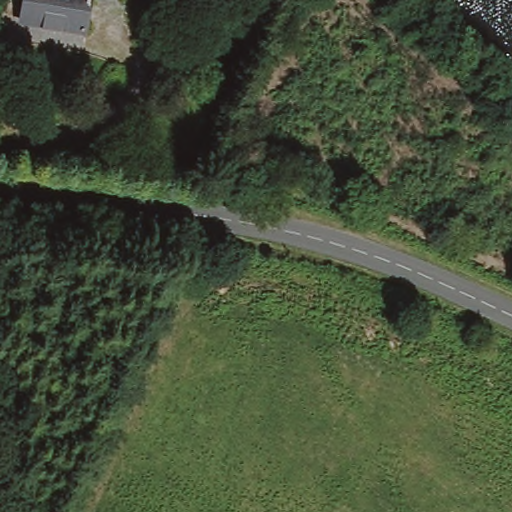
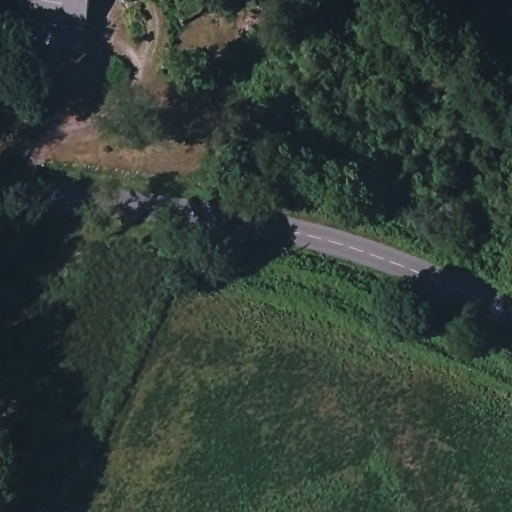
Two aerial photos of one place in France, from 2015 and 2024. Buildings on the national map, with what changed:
unchanged [(20,15),(22,0),(91,0),(87,27),(20,15)]

